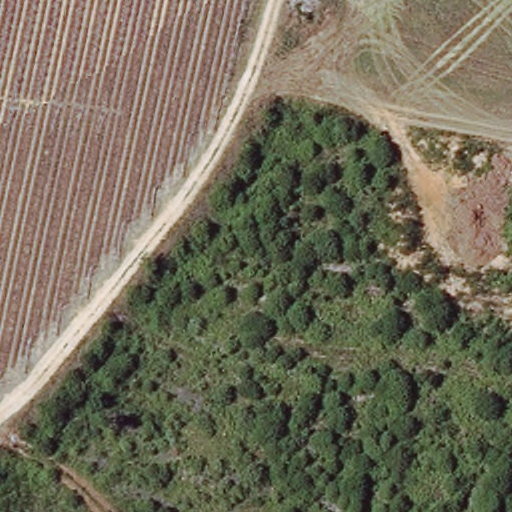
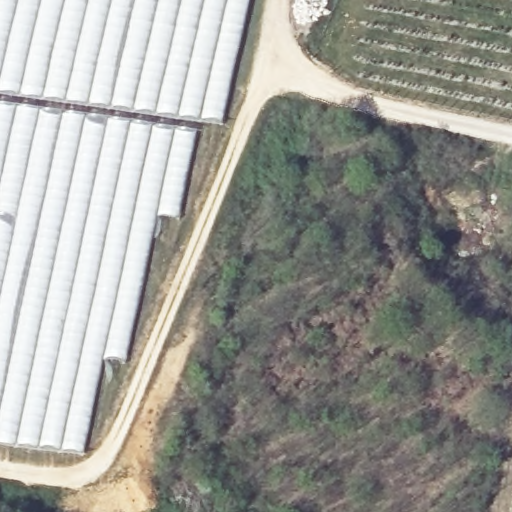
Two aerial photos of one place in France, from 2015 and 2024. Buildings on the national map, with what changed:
demolished [(210,135),(115,253),(0,385),(0,0),(241,0),(210,135)]
new [(222,125),(171,120),(170,125),(198,130),(180,219),(157,215),(127,361),(103,358),(85,454),(0,444),(0,0),(249,0),(222,125)]
new [(511,512),(512,505),(512,512),(511,512)]

